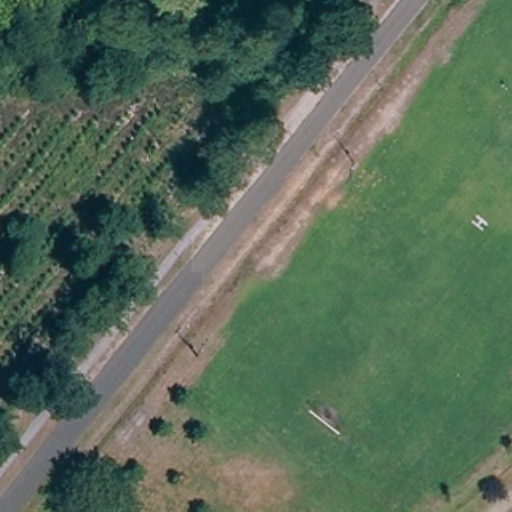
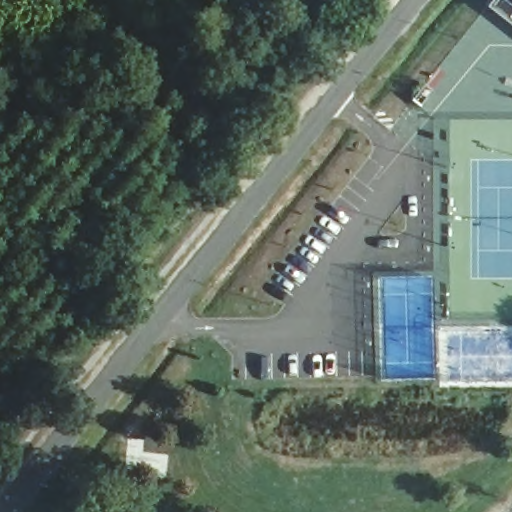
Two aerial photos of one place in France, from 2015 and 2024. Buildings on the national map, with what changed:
new [(487,8),(492,0),(512,0),(512,27),(487,8)]

